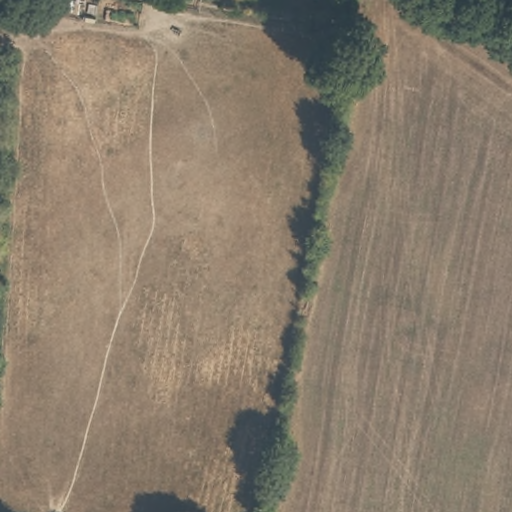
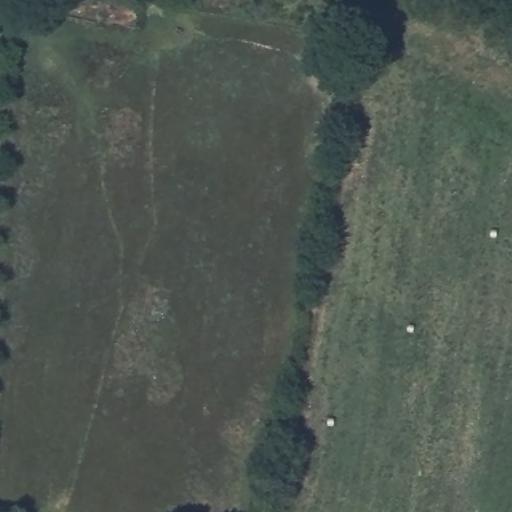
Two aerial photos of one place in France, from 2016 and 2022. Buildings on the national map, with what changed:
unchanged [(0,39),(0,4),(5,4),(4,39),(0,39)]

